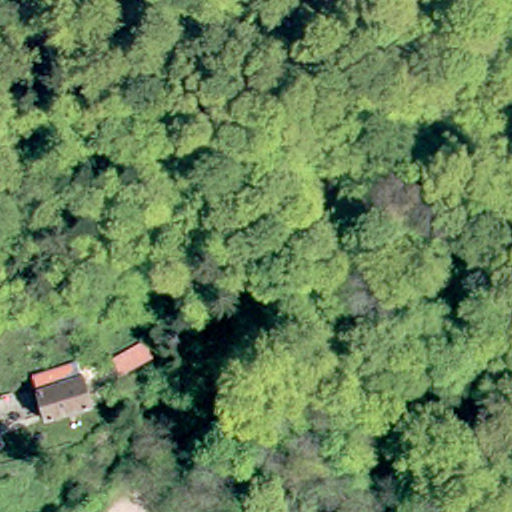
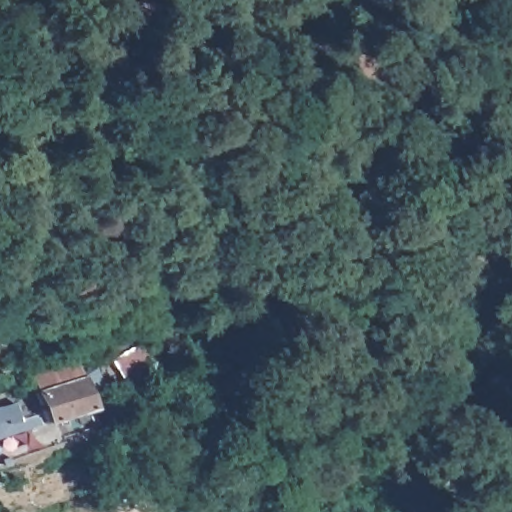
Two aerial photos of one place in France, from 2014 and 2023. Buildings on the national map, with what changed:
unchanged [(154,360),(119,379),(108,360),(143,342),(154,360)]
unchanged [(33,377),(78,361),(86,382),(39,397),(33,377)]
unchanged [(49,426),(46,416),(39,397),(86,382),(89,390),(95,388),(101,402),(94,405),(95,411),(49,426)]
unchanged [(18,425),(21,437),(7,442),(3,431),(18,425)]

